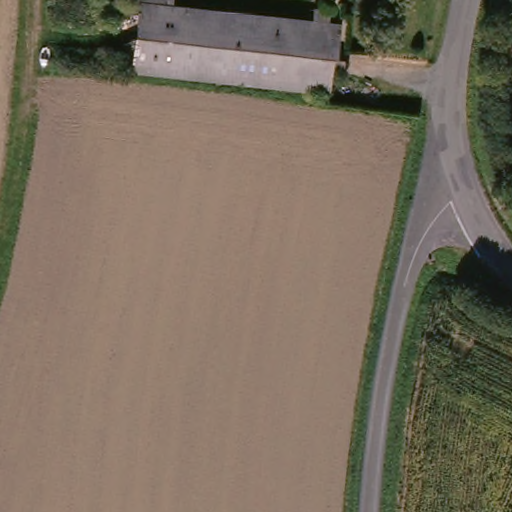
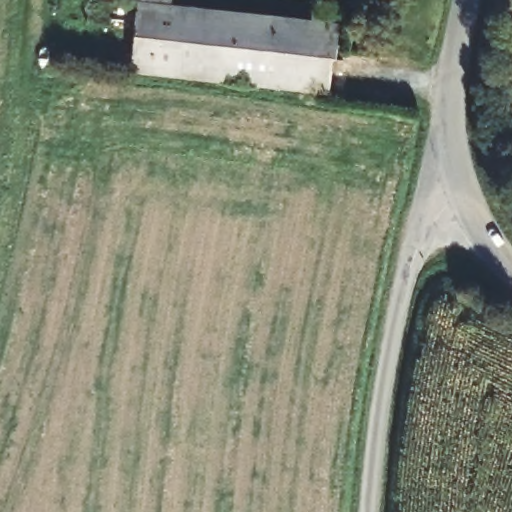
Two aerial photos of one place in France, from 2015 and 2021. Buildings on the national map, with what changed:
unchanged [(106,76),(111,7),(334,30),(327,94),(106,76)]

